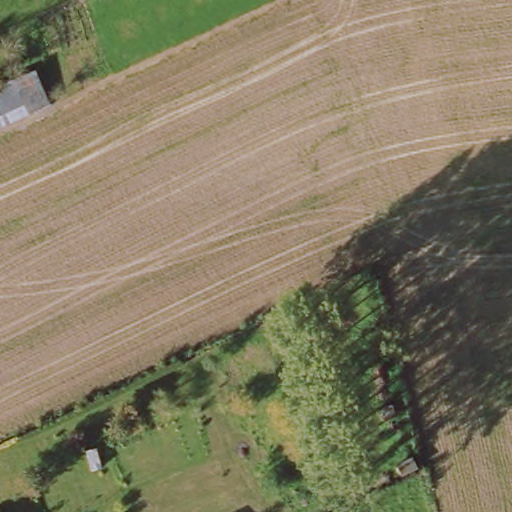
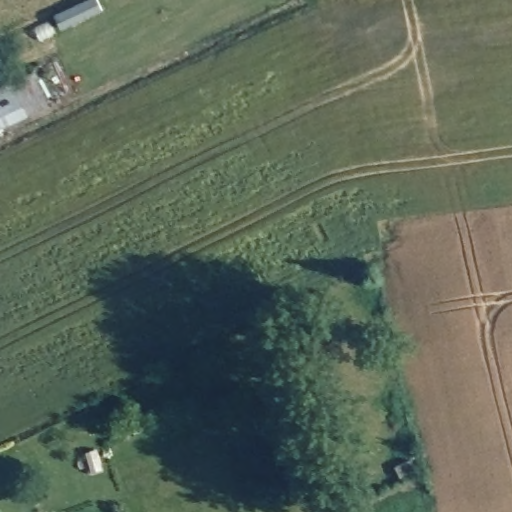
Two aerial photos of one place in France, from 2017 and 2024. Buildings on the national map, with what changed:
unchanged [(35,72),(48,110),(0,132),(0,85),(35,72)]

